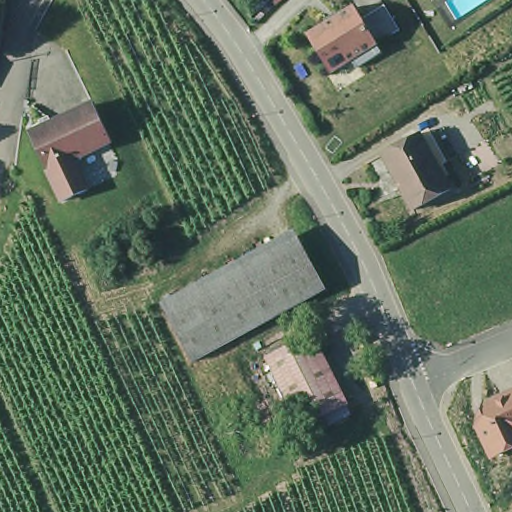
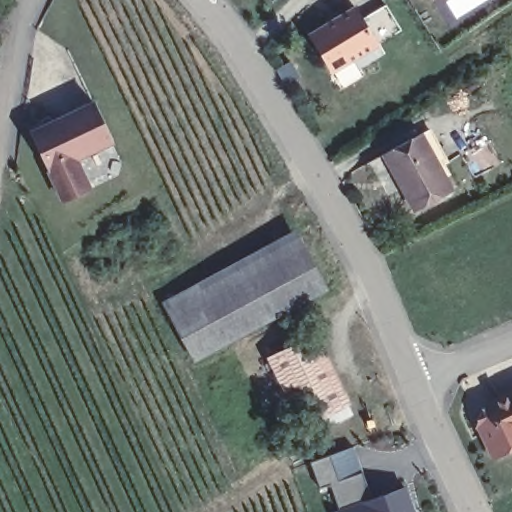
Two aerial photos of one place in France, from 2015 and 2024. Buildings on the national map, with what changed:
unchanged [(350,68),(345,60),(326,71),(303,34),(349,7),(356,19),(380,5),(395,31),(371,44),(376,53),(350,68)]
unchanged [(87,189),(62,200),(31,132),(94,104),(111,141),(73,158),(87,189)]
unchanged [(401,186),(399,187),(381,153),(418,133),(428,127),(447,161),(437,166),(450,189),(415,209),(401,186)]
unchanged [(300,241),(326,288),(281,312),(255,265),(300,241)]
unchanged [(229,318),(225,312),(213,288),(255,265),(281,312),(238,337),(229,318)]
unchanged [(167,312),(213,288),(225,312),(229,318),(238,337),(194,361),(167,312)]
unchanged [(350,403),(306,426),(273,358),(316,335),(350,403)]
unchanged [(512,452),(505,455),(490,461),(474,425),(482,402),(512,390),(512,452)]
new [(339,511),(330,485),(320,487),(310,462),(328,456),(338,480),(362,473),(371,499),(404,489),(412,512),(337,512),(339,511)]

